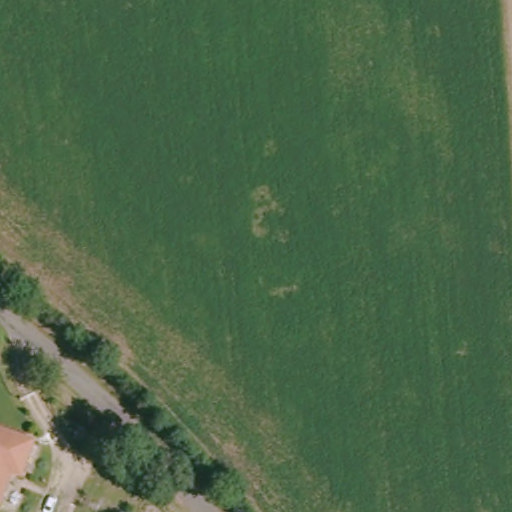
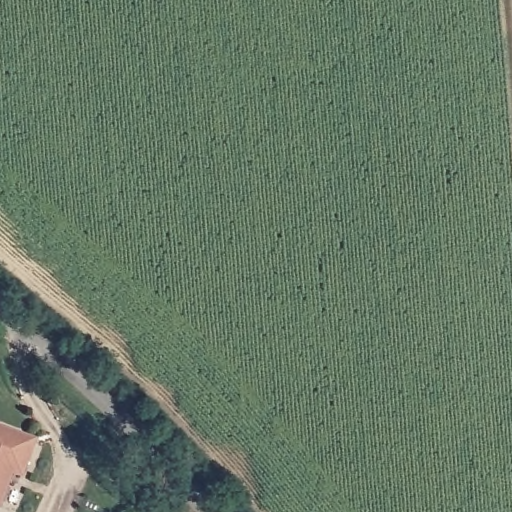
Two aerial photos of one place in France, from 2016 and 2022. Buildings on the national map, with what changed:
unchanged [(30,439),(20,476),(6,472),(4,478),(6,482),(0,499),(0,430),(30,439)]

